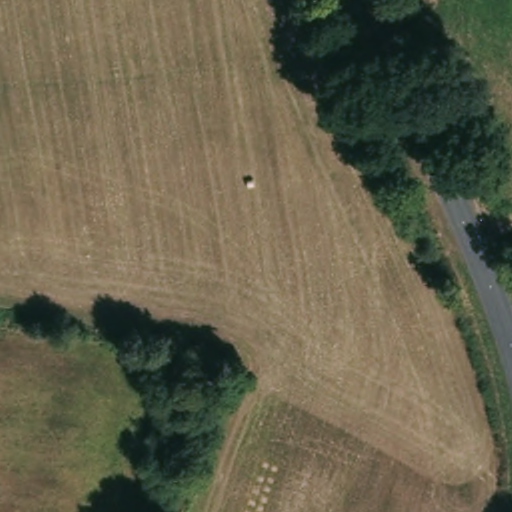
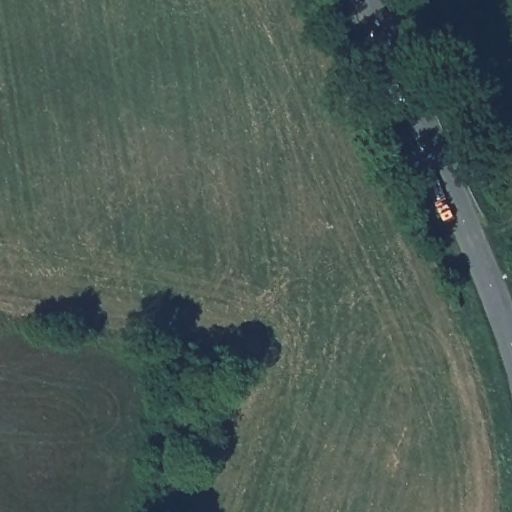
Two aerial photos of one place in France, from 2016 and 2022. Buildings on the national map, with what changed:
[]

